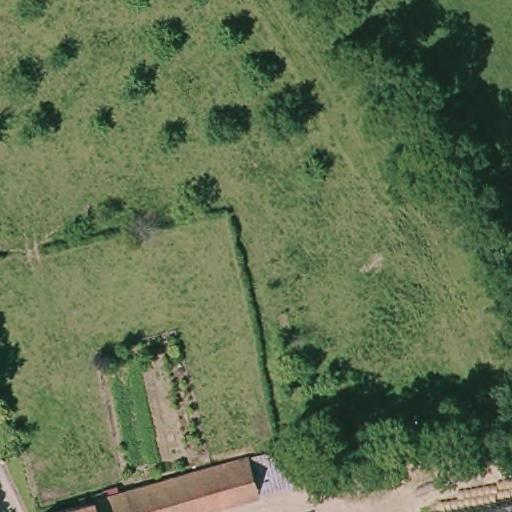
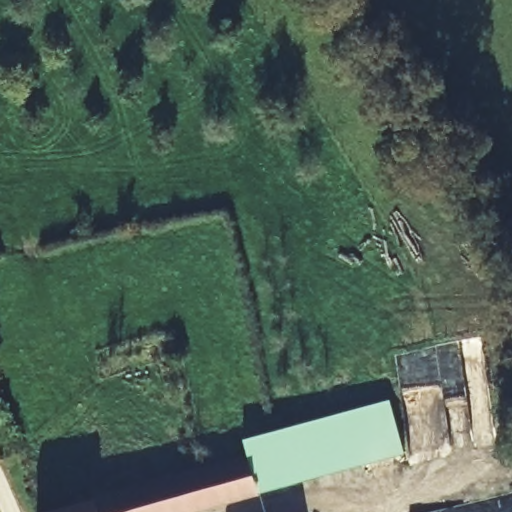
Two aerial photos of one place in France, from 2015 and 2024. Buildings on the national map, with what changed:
new [(404,454),(287,486),(284,467),(277,468),(266,470),(263,458),(248,461),(241,439),(389,400),(404,454)]
unchanged [(157,483),(190,475),(263,458),(266,470),(277,468),(284,467),(288,493),(199,512),(46,512),(44,506),(94,496),(157,483)]

